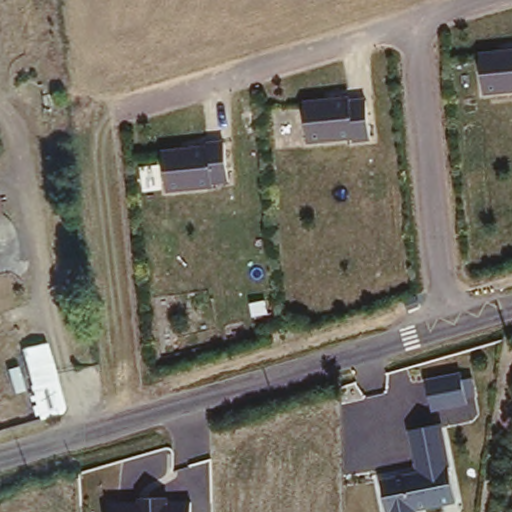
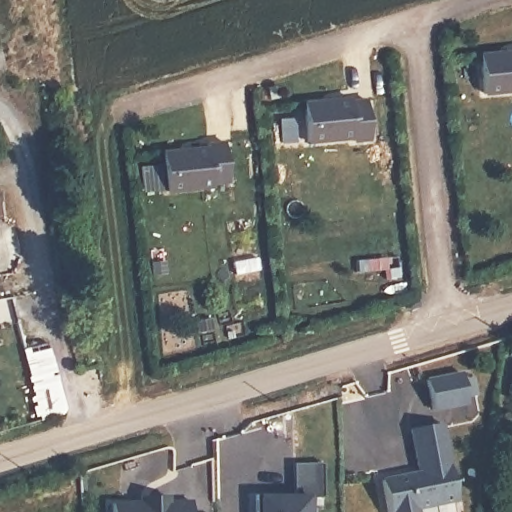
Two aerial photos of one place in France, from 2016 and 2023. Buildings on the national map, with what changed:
unchanged [(512,52),(512,93),(480,95),(476,56),(512,52)]
unchanged [(363,100),(367,137),(306,142),(302,103),(363,100)]
unchanged [(219,146),(224,181),(163,190),(161,152),(219,146)]
unchanged [(4,214),(0,215),(0,197),(2,197),(4,214)]
unchanged [(65,412),(42,419),(23,350),(49,343),(65,412)]
unchanged [(477,395),(465,398),(467,404),(432,412),(425,380),(462,372),(463,379),(471,377),(477,395)]
unchanged [(452,500),(413,507),(415,512),(384,512),(376,477),(415,471),(407,431),(437,422),(452,500)]
new [(292,457),(322,457),(325,489),(310,489),(310,512),(253,512),(253,481),(292,481),(292,457)]
unchanged [(139,503),(139,497),(169,498),(169,502),(192,502),(192,512),(109,512),(109,503),(139,503)]

